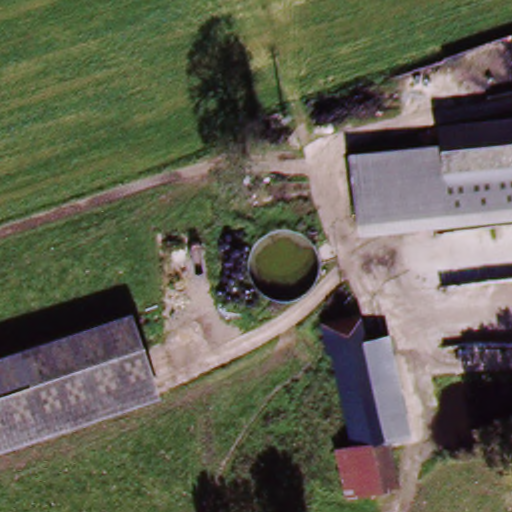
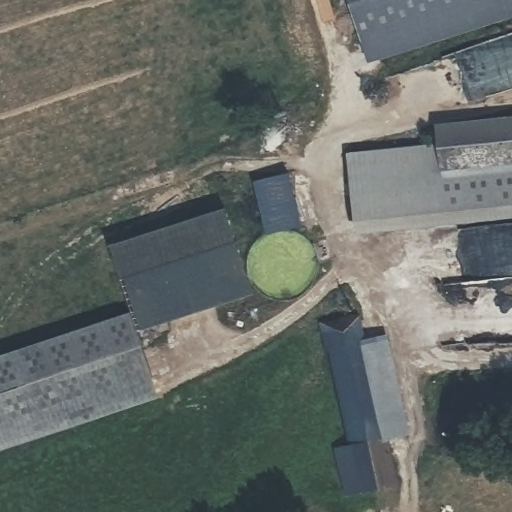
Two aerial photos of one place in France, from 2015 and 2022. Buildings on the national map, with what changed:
new [(512,0),(512,10),(370,55),(353,0),(512,0)]
unchanged [(455,157),(454,138),(512,134),(512,189),(458,193),(455,157)]
unchanged [(369,230),(364,164),(455,157),(458,193),(512,189),(512,219),(369,230)]
new [(138,313),(116,247),(230,210),(252,276),(138,313)]
unchanged [(137,314),(156,377),(157,380),(0,432),(0,359),(137,314)]
unchanged [(363,315),(365,328),(367,342),(331,347),(328,320),(363,315)]
unchanged [(389,338),(406,441),(385,445),(367,342),(389,338)]
unchanged [(349,451),(332,353),(331,347),(367,342),(385,445),(349,451)]
unchanged [(372,490),(345,495),(338,452),(349,451),(385,445),(392,487),(372,490)]

